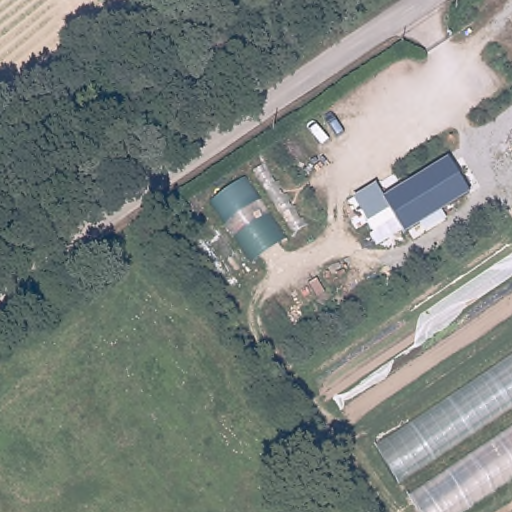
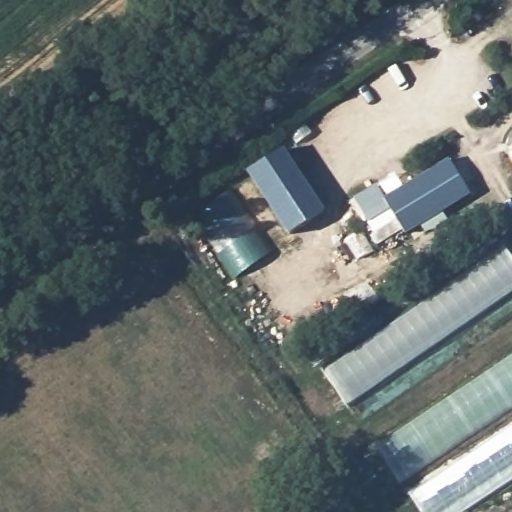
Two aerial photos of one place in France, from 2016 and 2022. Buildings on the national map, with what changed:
unchanged [(445,159),(468,193),(440,211),(445,222),(425,235),(419,225),(405,234),(401,228),(376,243),(369,235),(373,232),(351,196),(375,182),(385,198),(400,186),(445,159)]
unchanged [(211,203),(244,181),(285,238),(253,259),(211,203)]
new [(501,244),(512,260),(512,291),(346,406),(321,371),(501,244)]
unchanged [(419,512),(376,448),(512,358),(512,479),(463,512),(419,512)]

